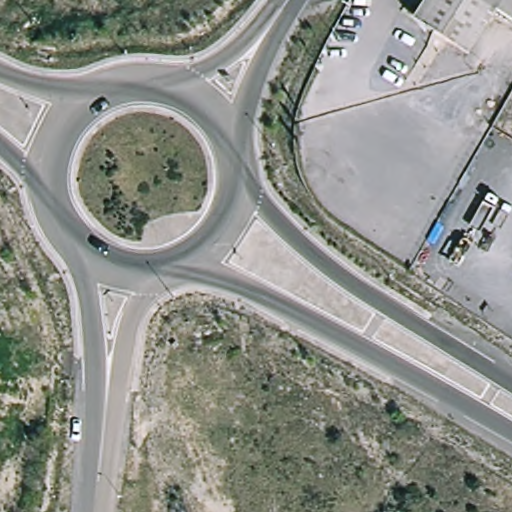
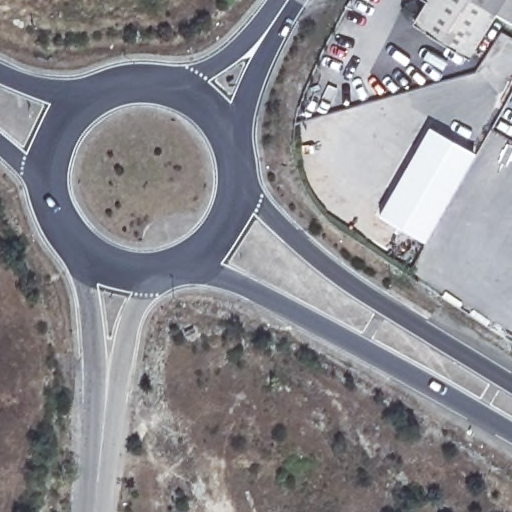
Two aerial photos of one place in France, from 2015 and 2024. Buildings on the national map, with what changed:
unchanged [(422,21),(434,0),(483,0),(502,11),(475,54),(422,21)]
unchanged [(502,11),(483,0),(512,0),(512,18),(502,11)]
new [(427,123),(471,148),(422,238),(376,213),(427,123)]

